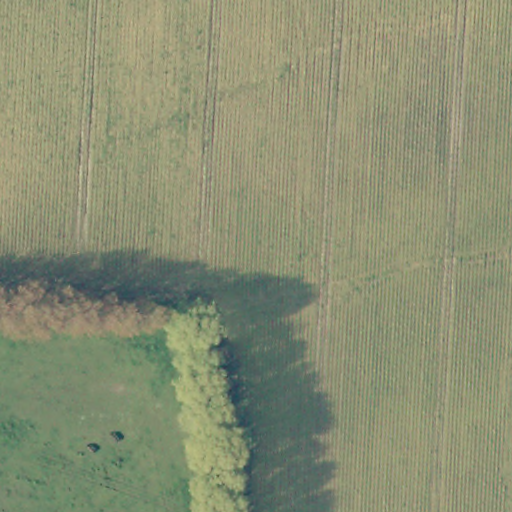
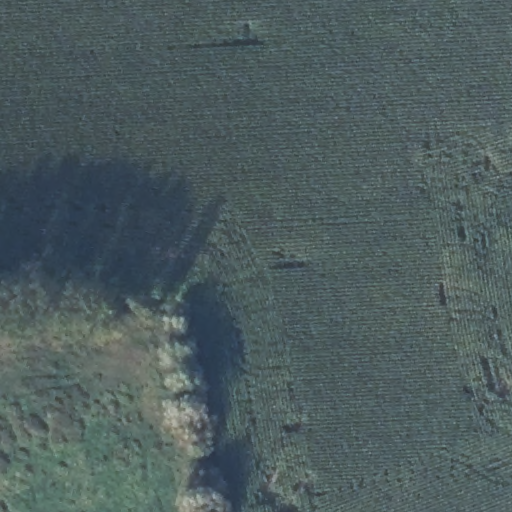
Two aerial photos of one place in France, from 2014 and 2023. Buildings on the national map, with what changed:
[]

